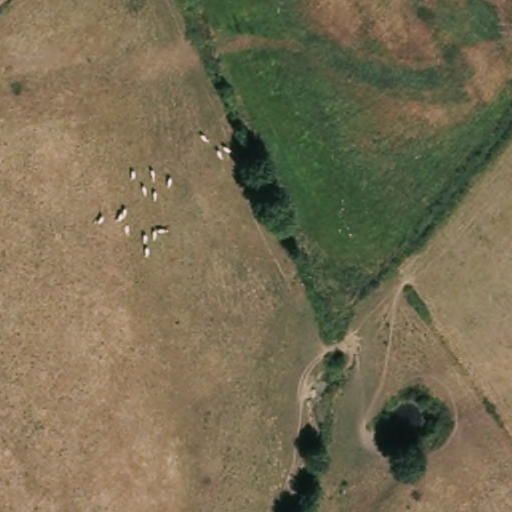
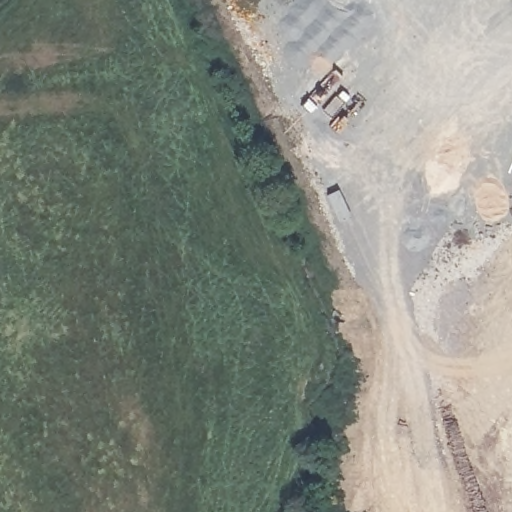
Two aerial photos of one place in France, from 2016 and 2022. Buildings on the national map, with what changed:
[]

